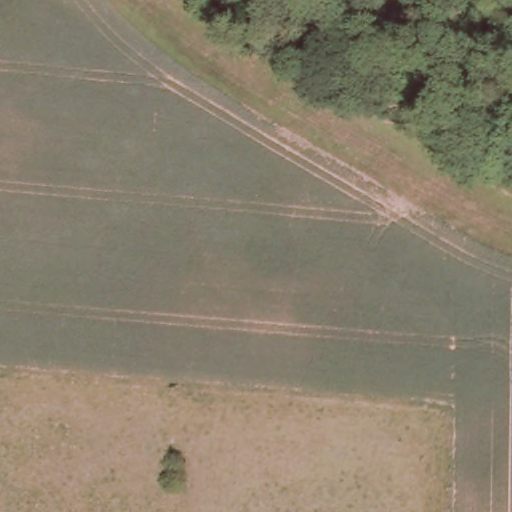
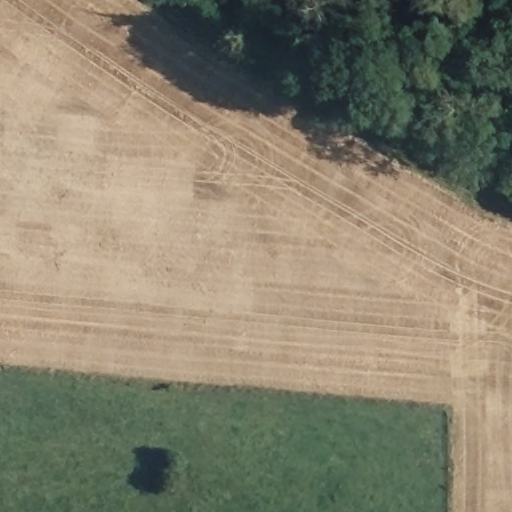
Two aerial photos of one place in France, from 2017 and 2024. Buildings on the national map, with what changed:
[]

